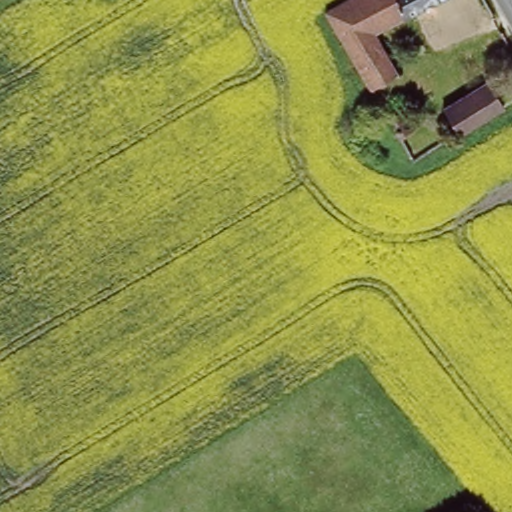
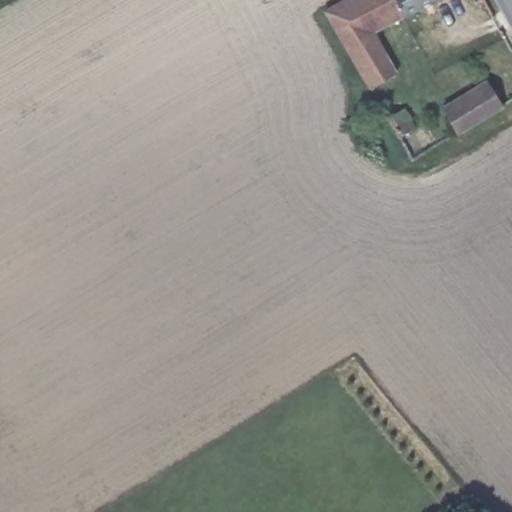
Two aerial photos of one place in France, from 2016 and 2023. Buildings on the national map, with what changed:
unchanged [(372,41),(396,85),(373,97),(332,25),(376,0),(446,0),(372,41)]
unchanged [(451,102),(489,81),(503,106),(465,128),(451,102)]
unchanged [(407,112),(418,131),(405,139),(413,155),(396,165),(382,139),(391,134),(386,125),(407,112)]

